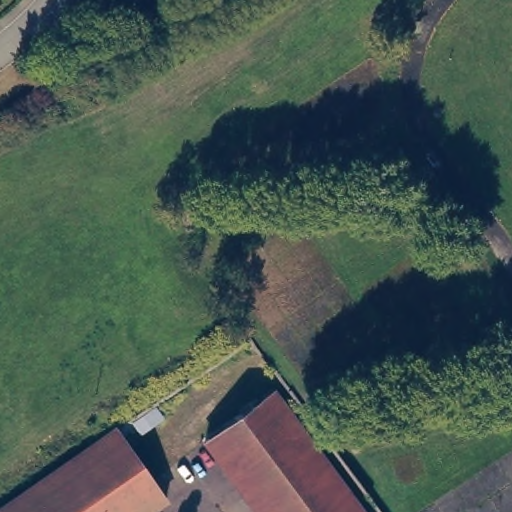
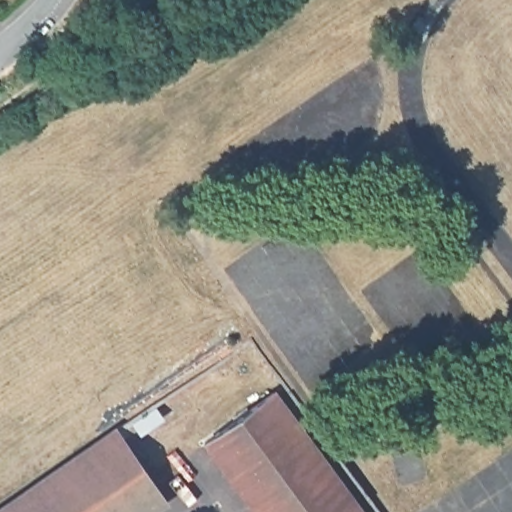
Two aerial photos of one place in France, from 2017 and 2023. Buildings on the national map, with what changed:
unchanged [(205,439),(273,389),(364,512),(258,512),(207,442),(205,439)]
unchanged [(165,502),(151,512),(0,512),(0,510),(115,430),(165,502)]

